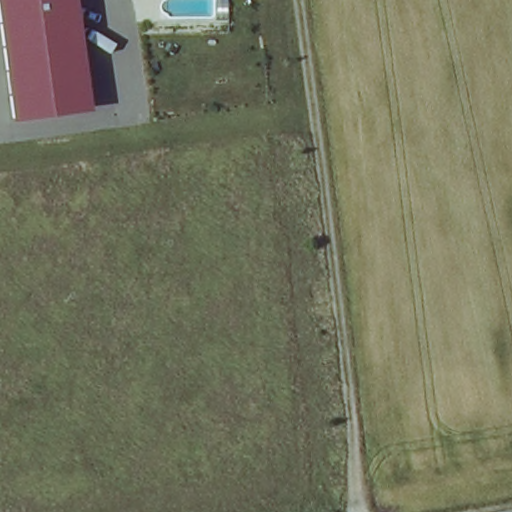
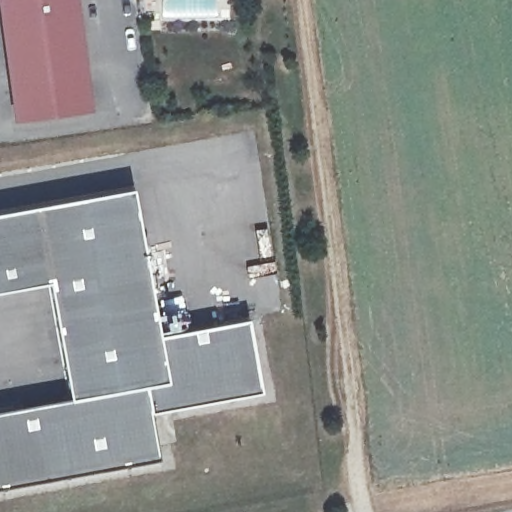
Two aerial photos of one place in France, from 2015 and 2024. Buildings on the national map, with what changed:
unchanged [(0,28),(0,0),(78,0),(92,110),(13,121),(0,28)]
new [(133,188),(159,336),(247,320),(261,390),(149,412),(157,459),(0,487),(0,412),(71,398),(50,281),(0,290),(0,212),(133,188)]

